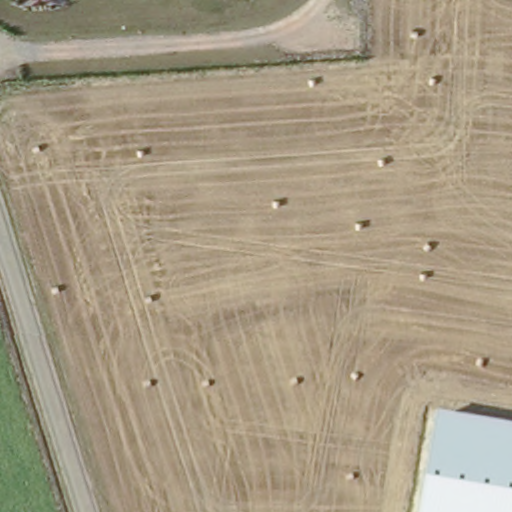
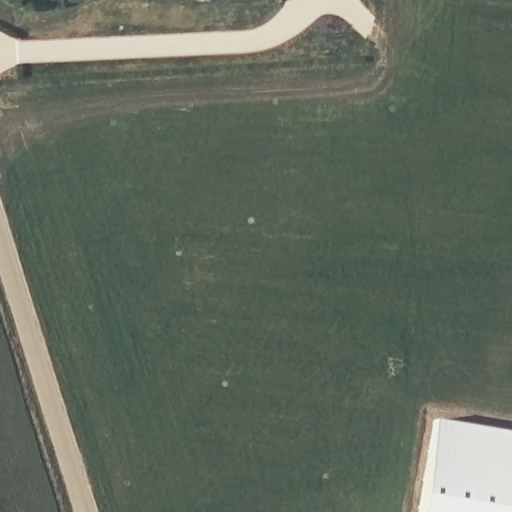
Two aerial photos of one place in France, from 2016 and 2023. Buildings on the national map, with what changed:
unchanged [(512,512),(420,512),(436,408),(512,422),(512,512)]

